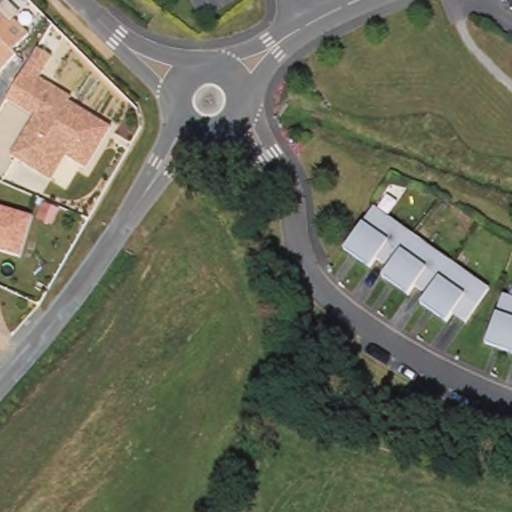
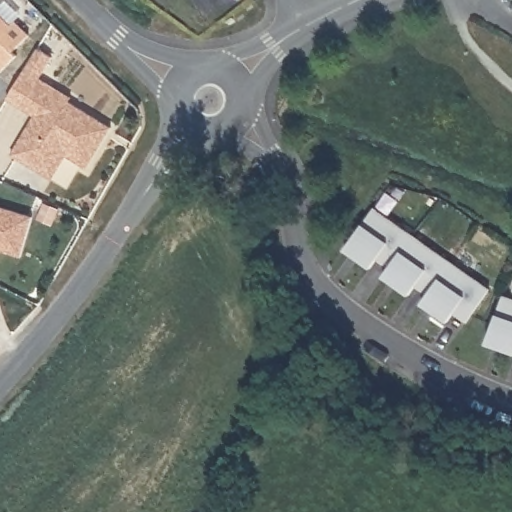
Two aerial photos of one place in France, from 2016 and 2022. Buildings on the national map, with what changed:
unchanged [(6,25),(11,21),(25,35),(9,52),(12,56),(0,69),(0,19),(6,25)]
unchanged [(40,172),(11,155),(35,116),(7,99),(32,59),(39,49),(53,58),(40,79),(55,87),(72,98),(70,102),(112,128),(87,169),(67,156),(52,180),(40,172)]
unchanged [(22,256),(0,250),(0,207),(34,216),(22,256)]
unchanged [(487,294),(463,326),(450,317),(444,326),(418,307),(425,298),(413,289),(406,298),(381,279),(387,270),(375,261),(369,271),(345,252),(364,226),(375,211),(487,294)]
unchanged [(512,355),(482,343),(501,295),(512,300),(512,355)]

